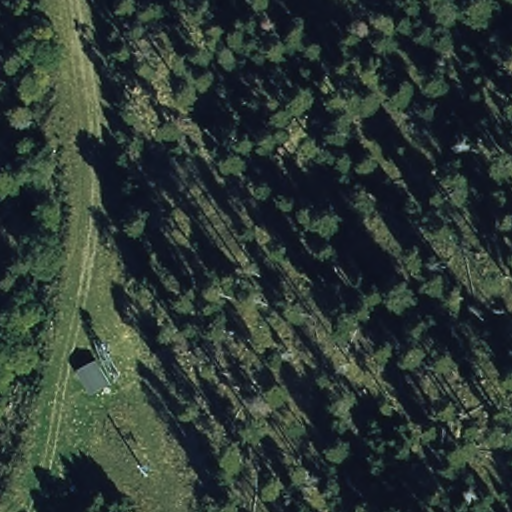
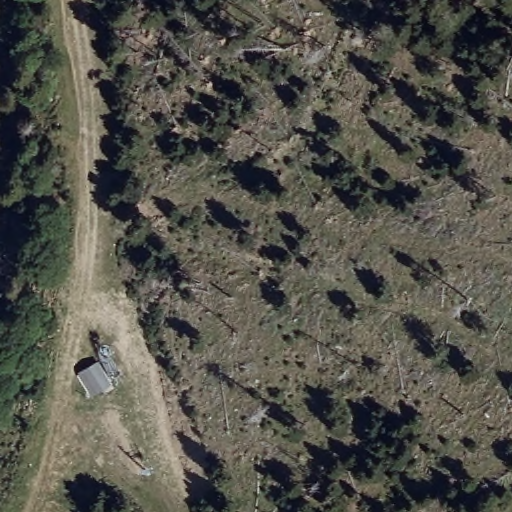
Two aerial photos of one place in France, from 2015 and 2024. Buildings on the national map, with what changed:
unchanged [(108,357),(121,380),(108,385),(95,390),(84,368),(108,357)]

